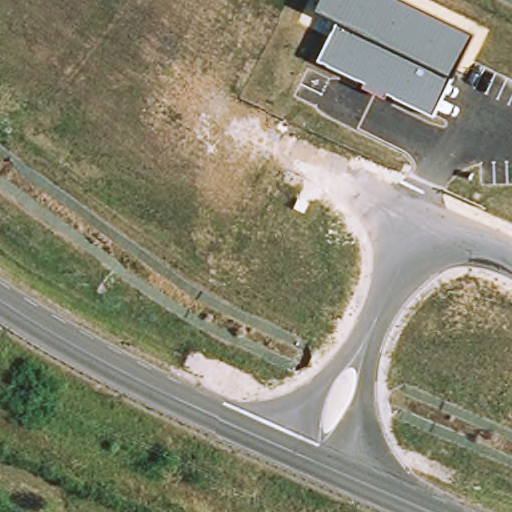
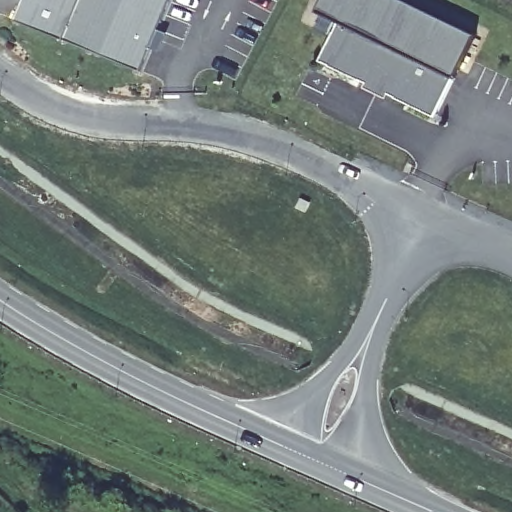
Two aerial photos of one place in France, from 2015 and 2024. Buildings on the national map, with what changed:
new [(26,0),(169,0),(141,69),(19,17),(26,0)]
unchanged [(477,35),(436,116),(321,59),(339,22),(319,11),(324,0),(404,0),(477,35)]

